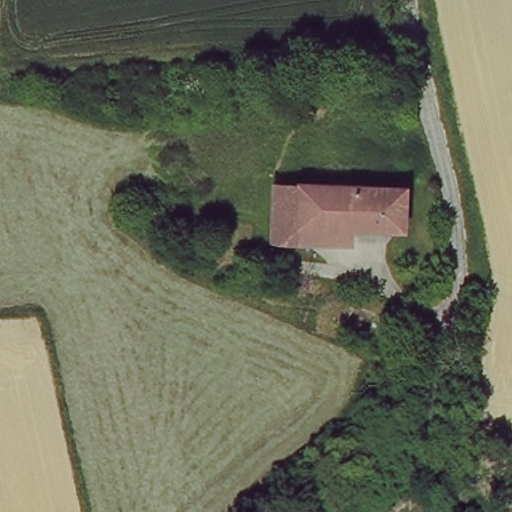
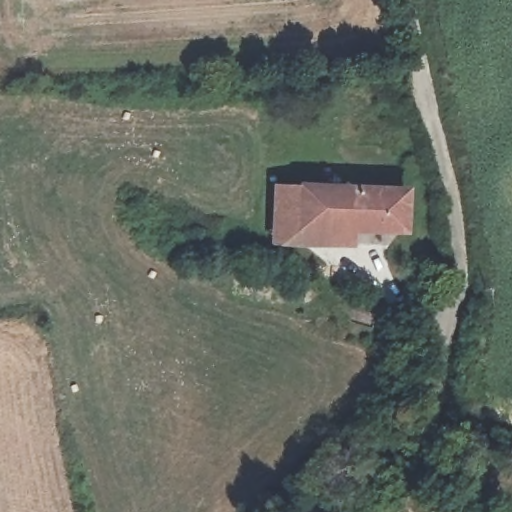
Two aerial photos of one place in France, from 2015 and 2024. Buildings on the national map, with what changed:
unchanged [(275,191),(406,197),(403,235),(357,235),(356,252),(272,246),(275,191)]

